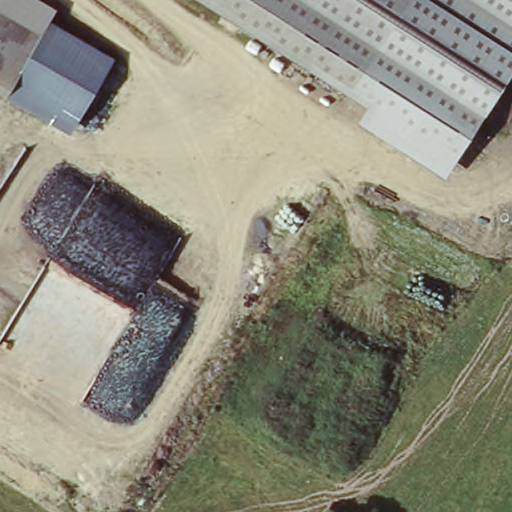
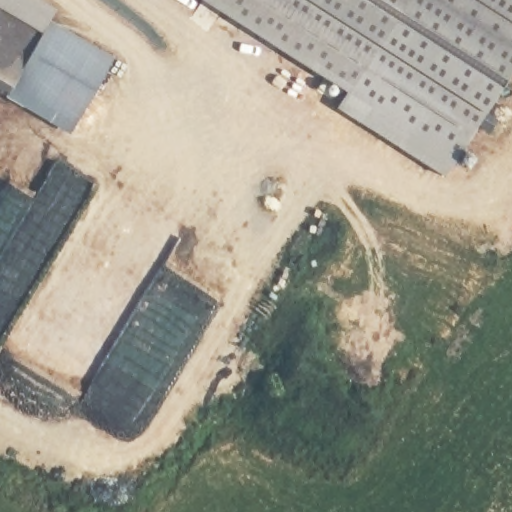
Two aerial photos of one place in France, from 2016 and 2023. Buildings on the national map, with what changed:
unchanged [(55,12),(50,22),(42,34),(0,9),(0,0),(36,0),(55,12)]
unchanged [(344,97),(191,0),(406,0),(344,97)]
unchanged [(358,120),(364,111),(344,97),(406,0),(512,0),(512,72),(446,175),(358,120)]
unchanged [(42,34),(50,22),(115,59),(75,125),(0,81),(0,9),(42,34)]

